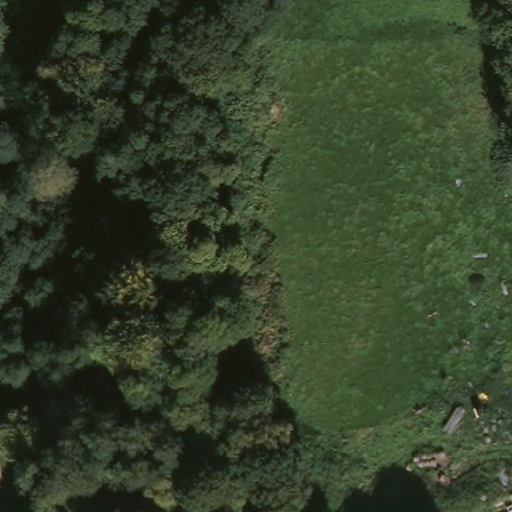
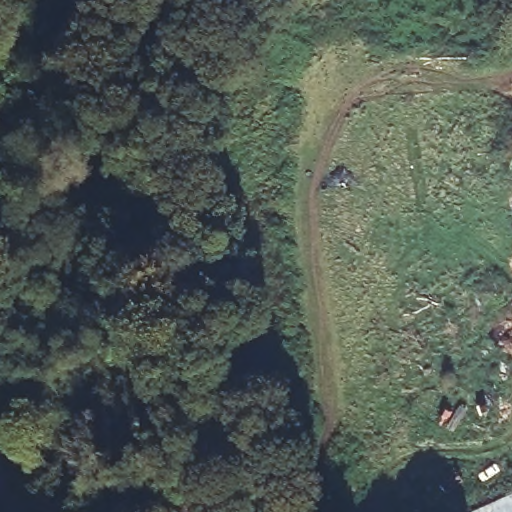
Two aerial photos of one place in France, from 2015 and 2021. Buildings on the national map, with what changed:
new [(512,496),(512,512),(478,512),(512,496)]

